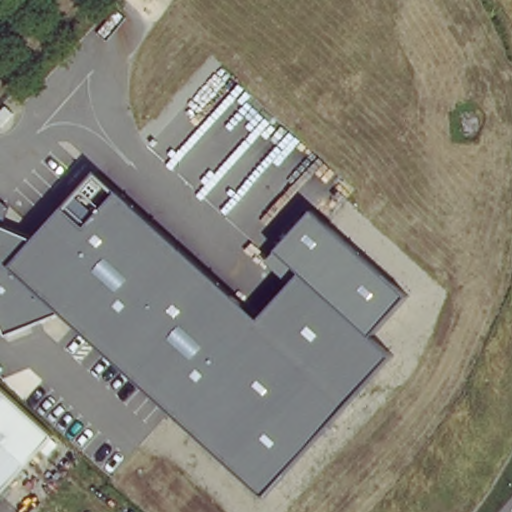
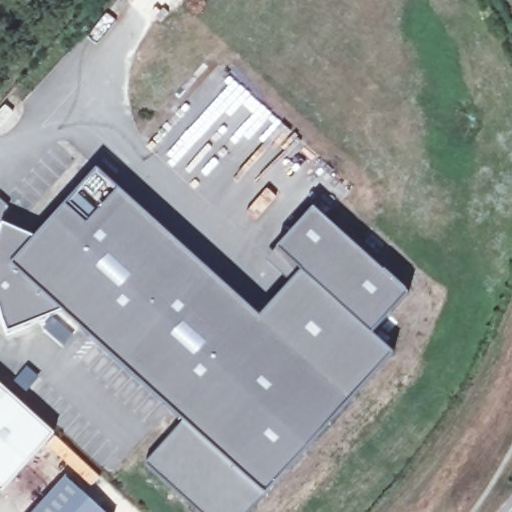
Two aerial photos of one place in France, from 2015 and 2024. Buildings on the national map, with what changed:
unchanged [(64,313),(7,336),(0,316),(0,206),(7,211),(3,228),(37,240),(97,173),(262,319),(302,274),(393,356),(268,496),(64,313)]
unchanged [(267,260),(277,249),(313,211),(408,295),(372,337),(302,274),(293,283),(267,260)]
unchanged [(0,494),(0,387),(55,436),(2,495),(0,494)]
new [(268,496),(253,512),(198,512),(145,464),(185,421),(268,496)]
new [(45,501),(65,478),(88,498),(104,512),(57,512),(45,501)]

